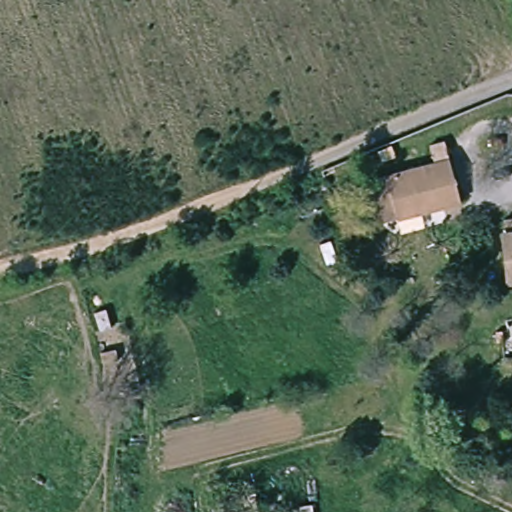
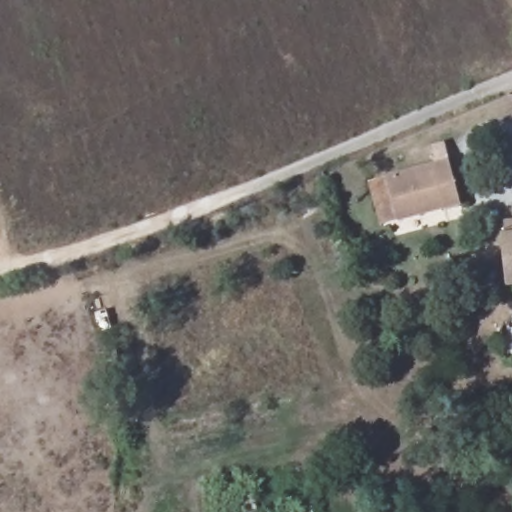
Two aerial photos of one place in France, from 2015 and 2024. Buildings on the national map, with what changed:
unchanged [(448,161),(459,204),(397,219),(385,176),(448,161)]
unchanged [(505,231),(512,231),(512,277),(510,277),(505,231)]

